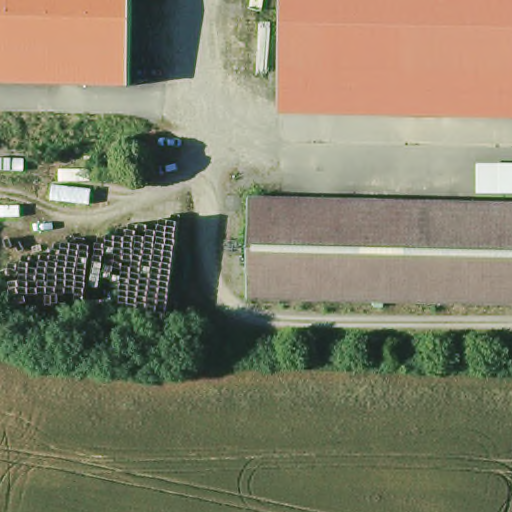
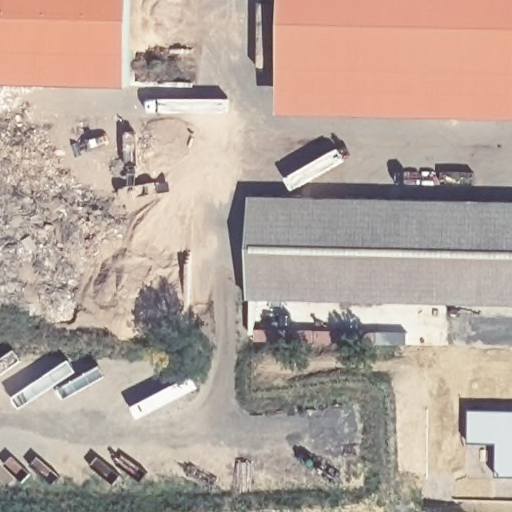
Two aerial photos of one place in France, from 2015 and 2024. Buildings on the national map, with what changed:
unchanged [(133,88),(0,84),(0,0),(134,0),(133,88)]
unchanged [(285,112),(285,0),(512,0),(512,119),(285,112)]
unchanged [(249,191),(512,200),(512,311),(246,307),(249,191)]
new [(469,409),(512,410),(512,476),(496,476),(496,443),(469,442),(469,409)]

